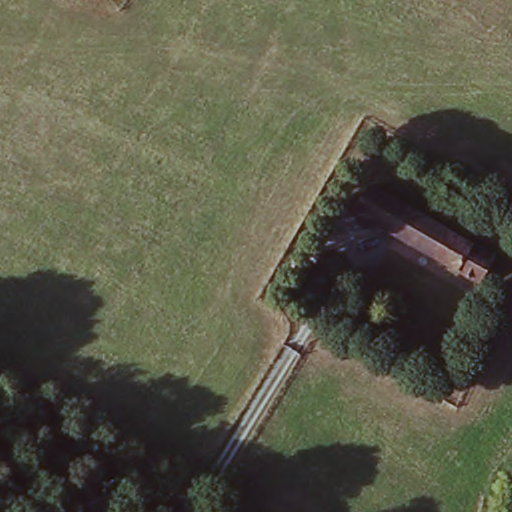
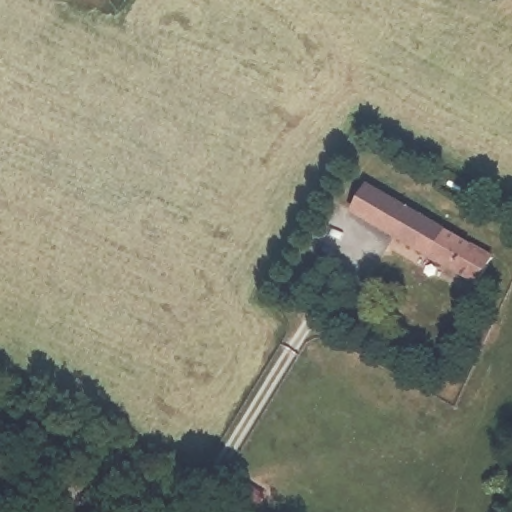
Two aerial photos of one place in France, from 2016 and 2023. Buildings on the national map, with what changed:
unchanged [(351,207),(368,178),(492,258),(474,285),(367,217),(351,207)]

